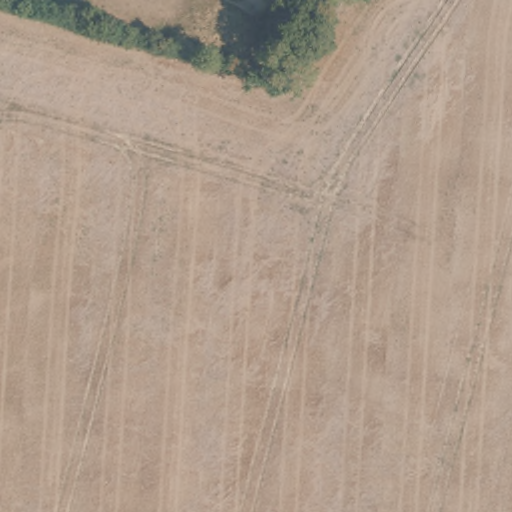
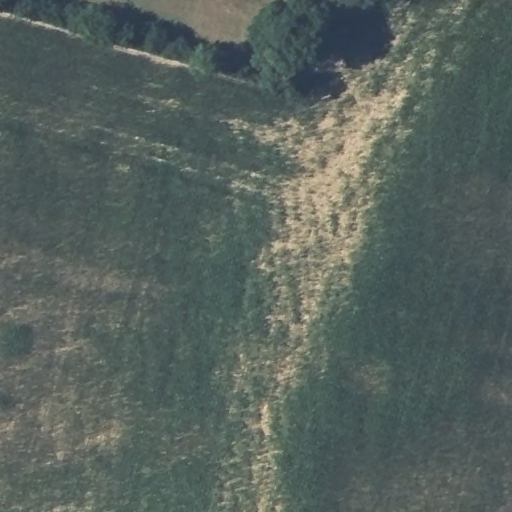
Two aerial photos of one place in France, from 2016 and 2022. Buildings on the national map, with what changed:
[]

